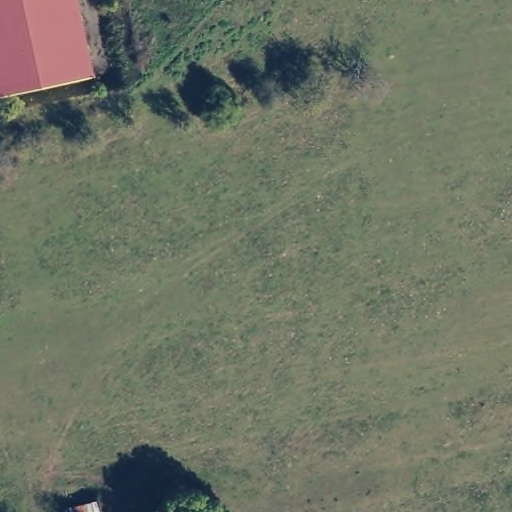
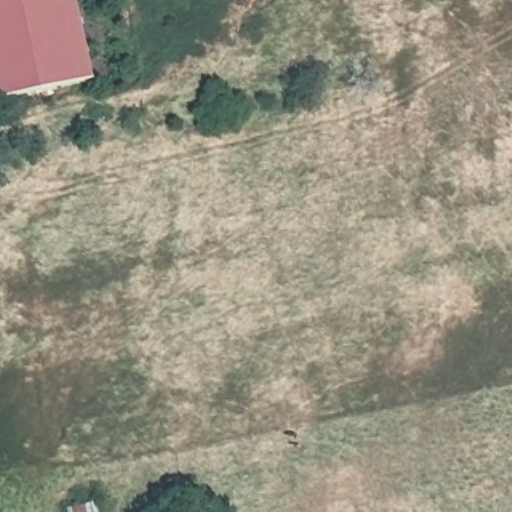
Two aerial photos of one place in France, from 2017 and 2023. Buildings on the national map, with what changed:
unchanged [(91,14),(0,34),(0,0),(88,0),(91,14)]
unchanged [(91,14),(102,69),(0,89),(0,34),(91,14)]

